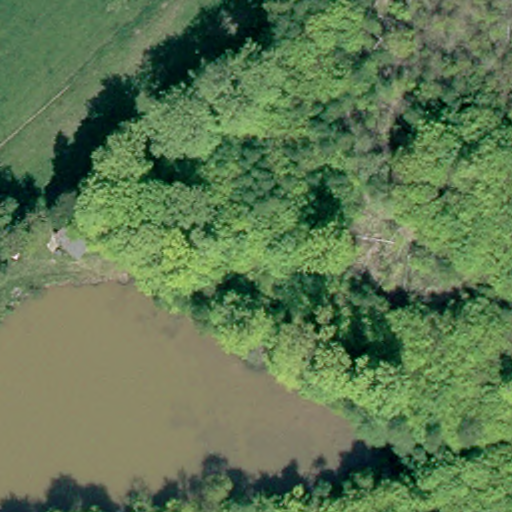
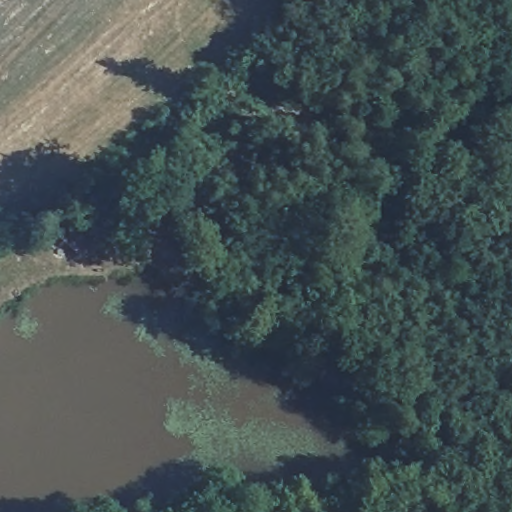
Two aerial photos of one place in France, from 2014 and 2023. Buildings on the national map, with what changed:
unchanged [(79,255),(58,235),(55,232),(69,215),(74,220),(94,239),(79,255)]

